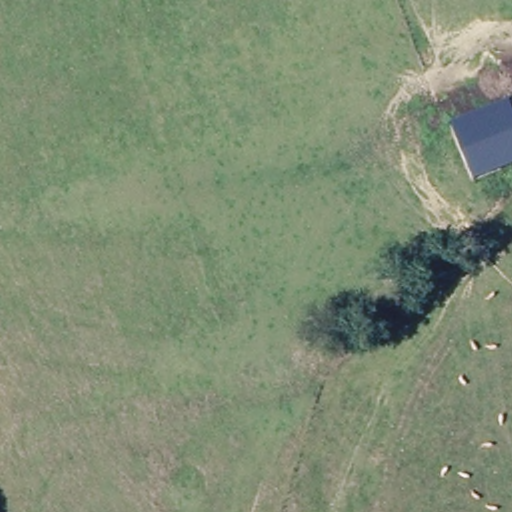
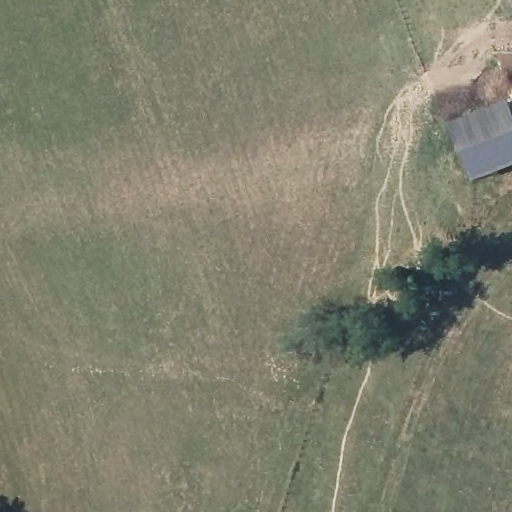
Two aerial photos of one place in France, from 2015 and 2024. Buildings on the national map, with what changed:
unchanged [(447,130),(506,103),(512,117),(512,169),(470,189),(447,130)]

